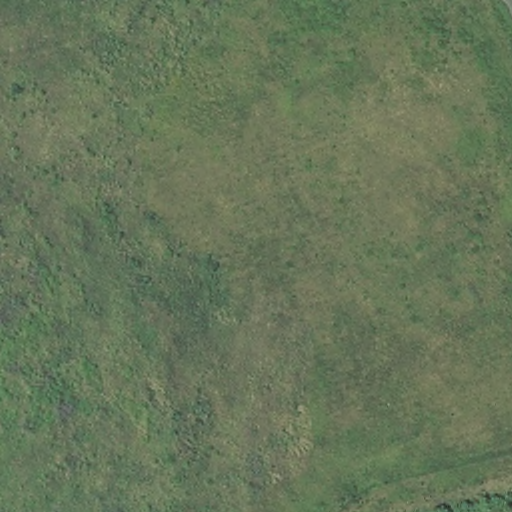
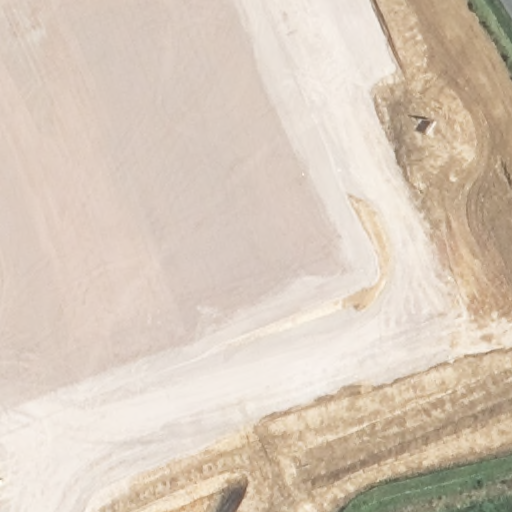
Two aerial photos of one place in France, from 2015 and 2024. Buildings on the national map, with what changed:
[]

